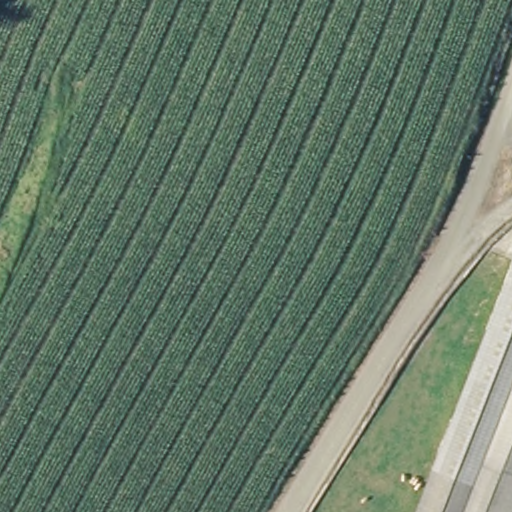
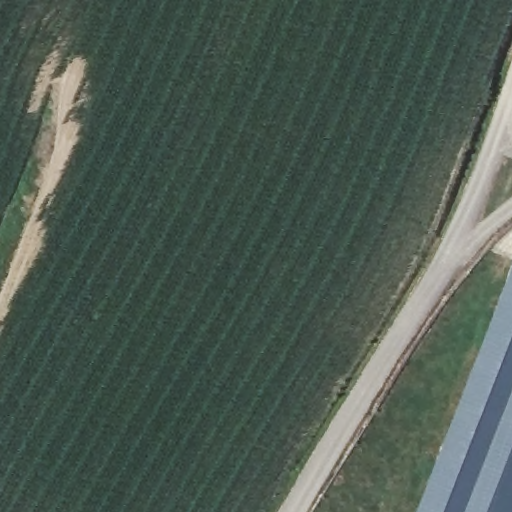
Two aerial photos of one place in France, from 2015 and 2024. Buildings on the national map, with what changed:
unchanged [(512,290),(512,469),(486,457),(475,482),(440,470),(512,290)]
unchanged [(475,482),(486,457),(512,469),(512,512),(423,512),(440,470),(475,482)]

